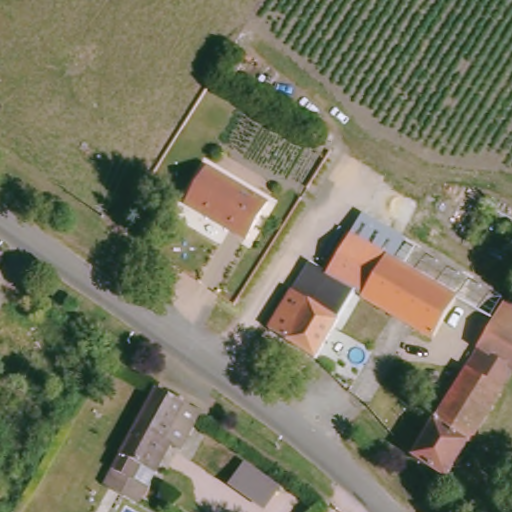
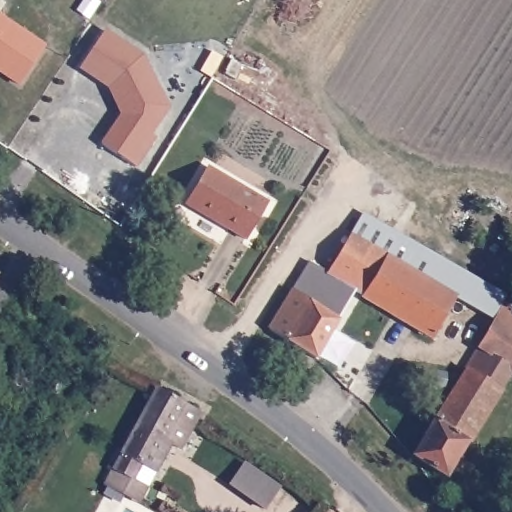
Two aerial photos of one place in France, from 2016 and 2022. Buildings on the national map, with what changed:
new [(45,46),(19,87),(0,74),(0,16),(45,46)]
new [(120,116),(107,89),(78,67),(106,33),(142,56),(170,108),(151,136),(155,140),(136,166),(102,143),(120,116)]
unchanged [(202,166),(263,204),(242,240),(180,202),(202,166)]
unchanged [(287,292),(305,302),(343,238),(450,301),(427,337),(350,291),(310,359),(265,329),(287,292)]
unchanged [(512,307),(512,378),(504,373),(441,474),(406,452),(497,298),(512,307)]
unchanged [(133,462),(125,475),(108,465),(150,387),(177,400),(193,410),(174,443),(165,438),(147,469),(133,462)]
new [(245,458),(276,483),(260,504),(228,478),(245,458)]

